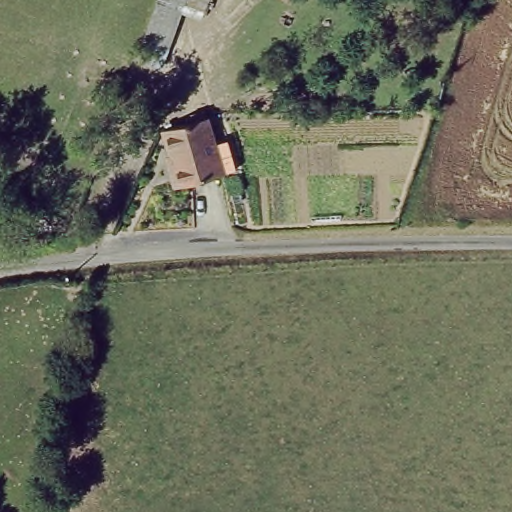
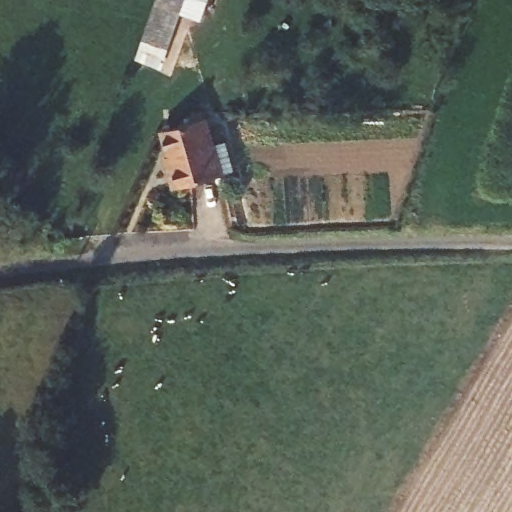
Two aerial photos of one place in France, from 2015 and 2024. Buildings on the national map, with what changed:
unchanged [(135,48),(143,28),(153,0),(181,0),(180,2),(168,37),(160,58),(135,48)]
unchanged [(200,9),(180,2),(181,0),(204,0),(200,9)]
unchanged [(163,155),(168,154),(161,129),(192,121),(190,115),(203,111),(212,143),(227,139),(235,169),(220,173),(177,185),(172,187),(163,155)]

